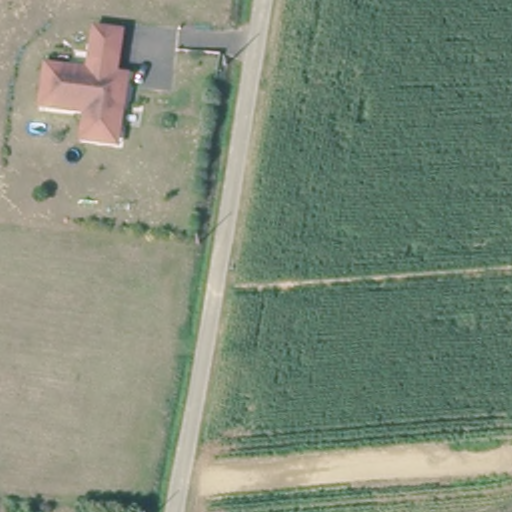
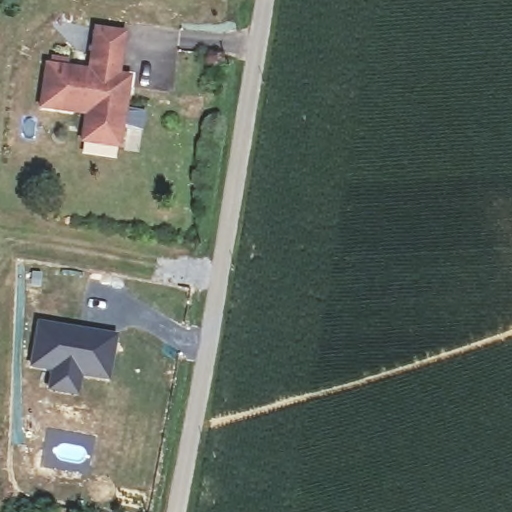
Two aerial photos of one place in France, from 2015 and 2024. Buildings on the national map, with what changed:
unchanged [(130,84),(124,129),(86,124),(86,111),(41,105),(47,63),(90,67),(95,26),(124,30),(120,72),(130,73),(130,84)]
new [(37,321),(117,334),(109,381),(81,376),(78,396),(47,390),(50,371),(29,366),(37,321)]

